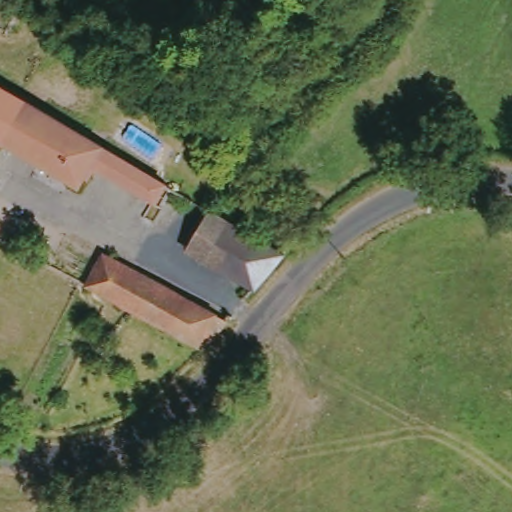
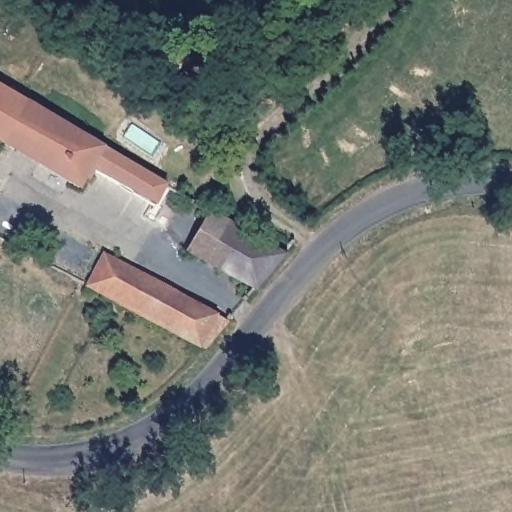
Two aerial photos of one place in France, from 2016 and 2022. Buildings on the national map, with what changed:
unchanged [(157,205),(96,169),(83,189),(0,140),(0,85),(170,185),(157,205)]
unchanged [(192,250),(215,213),(284,254),(258,287),(192,250)]
unchanged [(103,249),(163,282),(143,316),(84,282),(103,249)]
unchanged [(143,316),(163,282),(219,312),(200,346),(143,316)]

